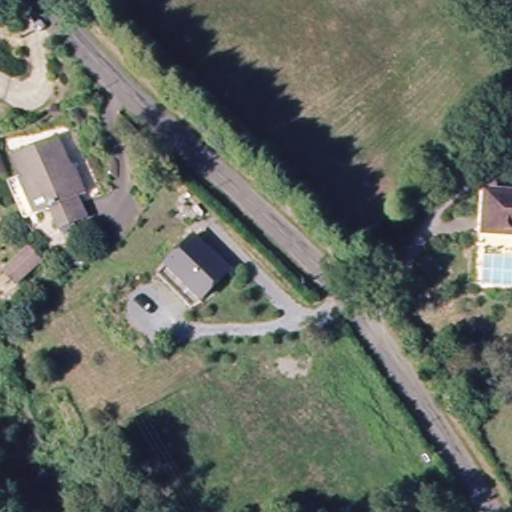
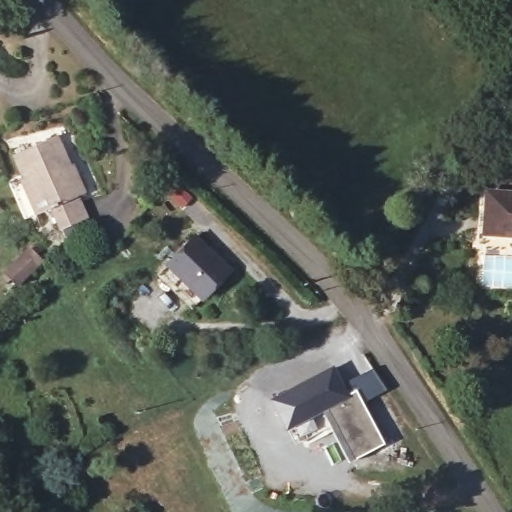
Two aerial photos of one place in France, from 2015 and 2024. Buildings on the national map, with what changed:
unchanged [(60,143),(76,185),(83,182),(91,204),(80,209),(87,233),(58,244),(49,220),(38,225),(15,158),(60,143)]
unchanged [(512,235),(482,233),(485,201),(512,202),(512,235)]
unchanged [(160,272),(172,259),(198,233),(233,265),(205,294),(195,305),(160,272)]
unchanged [(43,275),(16,303),(2,288),(25,260),(43,275)]
new [(329,428),(294,446),(284,430),(269,400),(335,368),(342,382),(375,365),(387,389),(360,402),(382,444),(347,461),(329,428)]

